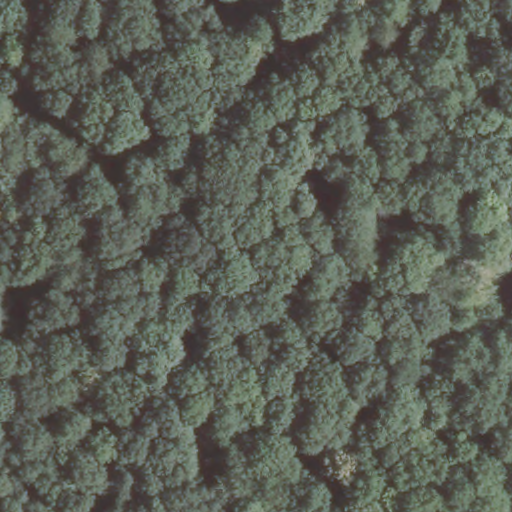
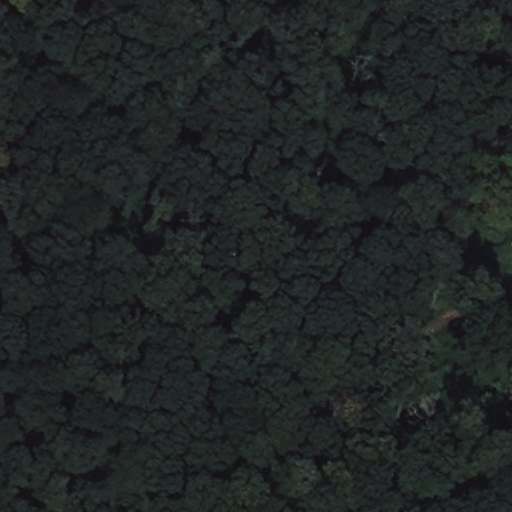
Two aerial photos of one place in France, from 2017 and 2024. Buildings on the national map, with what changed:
unchanged [(512,247),(512,253),(509,250),(512,247)]

